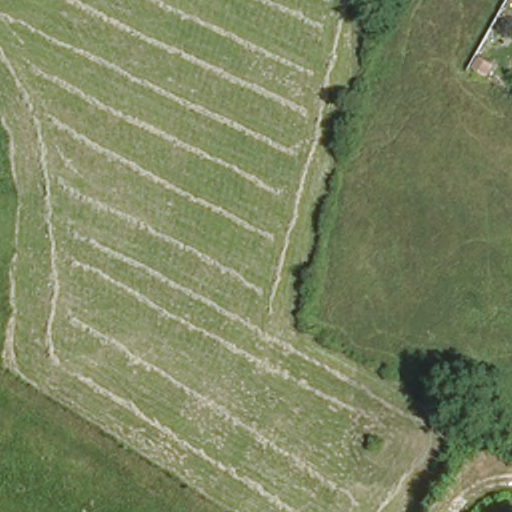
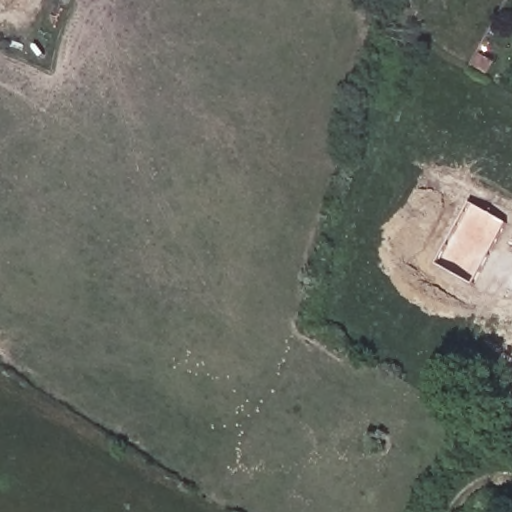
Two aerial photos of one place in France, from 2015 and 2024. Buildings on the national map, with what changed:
new [(468,203),(505,223),(471,285),(434,265),(468,203)]

